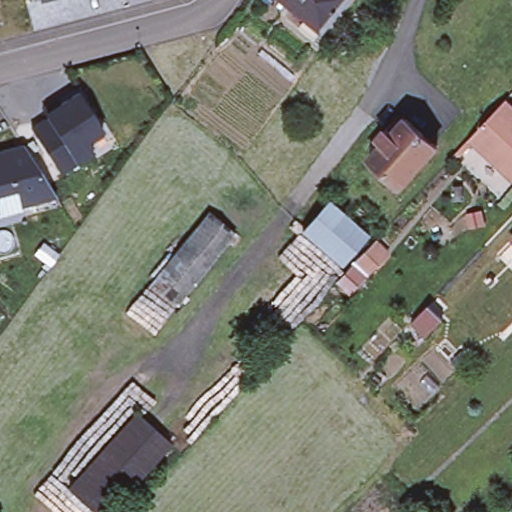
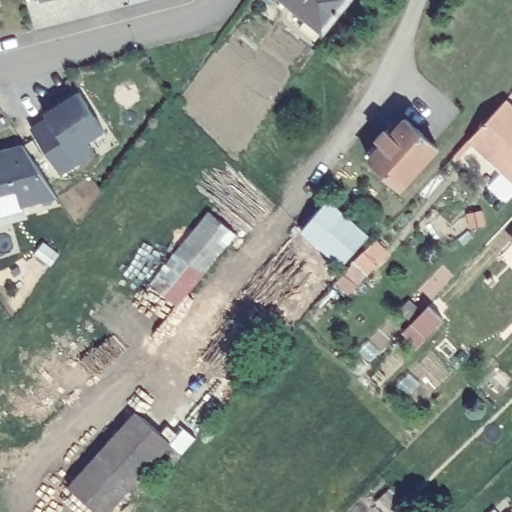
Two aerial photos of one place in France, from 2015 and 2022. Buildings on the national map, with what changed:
unchanged [(39,0),(45,0),(39,1),(39,0)]
unchanged [(320,34),(282,0),(347,0),(348,0),(320,34)]
unchanged [(46,119),(43,115),(59,105),(77,94),(102,131),(84,142),(92,153),(58,175),(29,130),(46,119)]
unchanged [(475,139),(480,133),(510,99),(512,101),(512,171),(475,139)]
unchanged [(441,150),(405,190),(372,160),(385,146),(380,141),(390,130),(395,134),(408,120),(441,150)]
unchanged [(22,147),(55,197),(22,206),(21,206),(0,212),(0,153),(22,147)]
unchanged [(336,266),(296,233),(321,204),(353,233),(360,239),(336,266)]
unchanged [(232,235),(176,305),(151,285),(208,215),(232,235)]
unchanged [(512,236),(512,239),(511,237),(512,236)]
unchanged [(368,241),(378,251),(359,272),(348,263),(365,244),(368,241)]
unchanged [(444,318),(427,336),(412,322),(430,305),(444,318)]
unchanged [(168,445),(108,512),(94,512),(68,489),(136,415),(168,445)]

